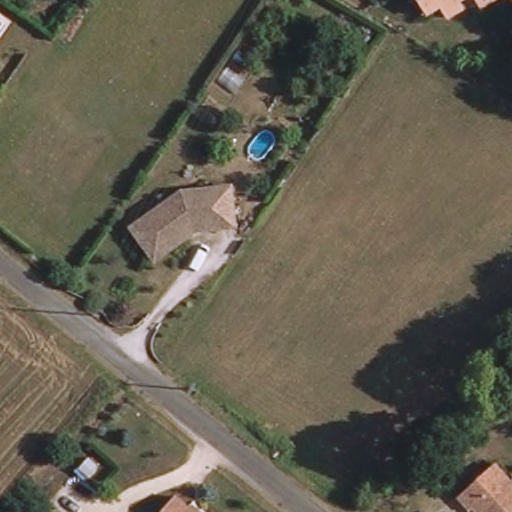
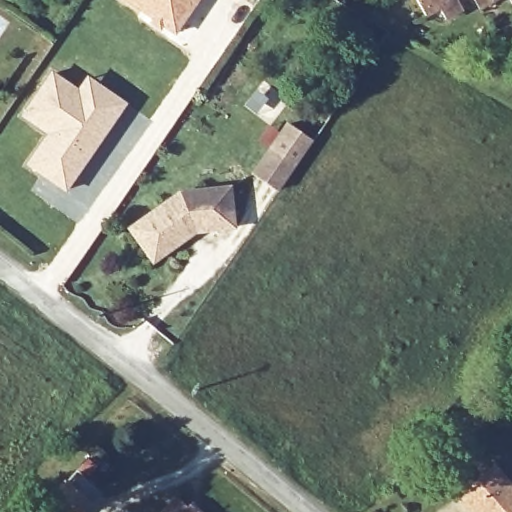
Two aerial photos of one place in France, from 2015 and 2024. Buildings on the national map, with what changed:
new [(165,26),(161,30),(152,24),(155,18),(125,0),(201,0),(177,33),(165,26)]
unchanged [(460,7),(445,14),(441,5),(425,11),(420,4),(417,0),(457,0),(460,7)]
unchanged [(476,4),(475,0),(485,0),(476,4)]
unchanged [(509,2),(508,0),(512,0),(509,2)]
new [(52,68),(77,86),(87,74),(129,103),(66,193),(24,164),(45,134),(19,115),(52,68)]
new [(287,127),(312,144),(295,168),(280,191),(255,174),(270,151),(287,127)]
unchanged [(185,195),(232,190),(237,230),(219,232),(216,227),(192,230),(190,239),(157,263),(133,231),(170,204),(185,195)]
unchanged [(473,512),(472,512),(460,500),(496,467),(512,484),(512,512),(477,512),(475,509),(473,512)]
unchanged [(159,512),(172,496),(192,512),(159,512)]

